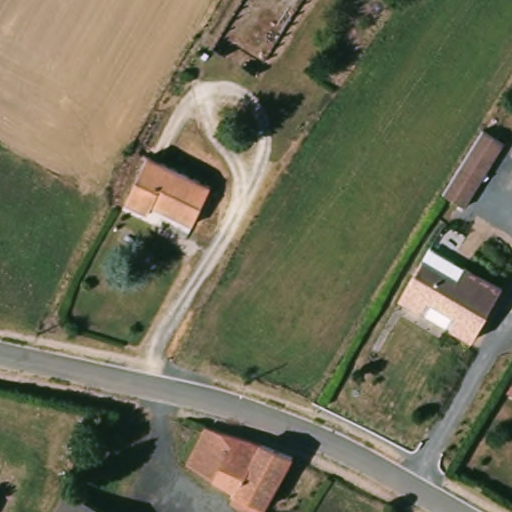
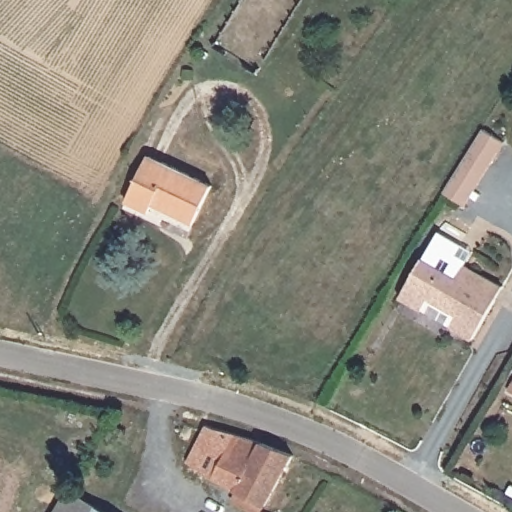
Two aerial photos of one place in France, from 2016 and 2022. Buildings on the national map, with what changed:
unchanged [(492,152),(467,195),(454,188),(480,144),(492,152)]
unchanged [(194,225),(154,206),(149,215),(128,204),(149,159),(211,189),(194,225)]
unchanged [(470,338),(399,297),(430,245),(500,286),(470,338)]
unchanged [(229,502),(235,493),(183,464),(202,424),(249,439),(261,444),(290,457),(262,507),(260,512),(248,512),(229,502)]
unchanged [(67,491),(96,506),(108,512),(55,512),(67,491)]

